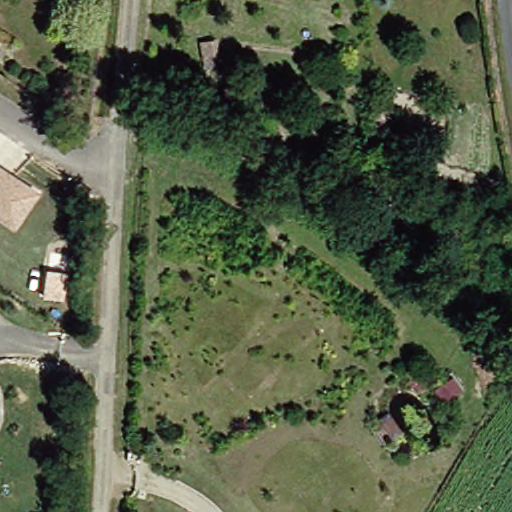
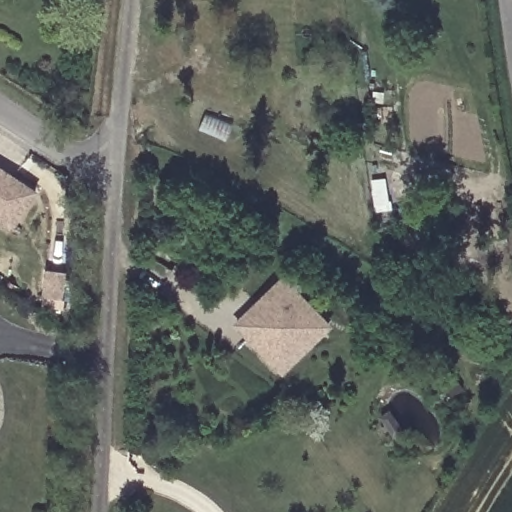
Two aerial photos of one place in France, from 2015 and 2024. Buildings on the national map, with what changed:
unchanged [(0,216),(0,164),(35,187),(11,222),(0,216)]
new [(272,359),(249,336),(237,324),(252,308),(283,278),(329,323),(312,341),(283,370),(272,359)]

